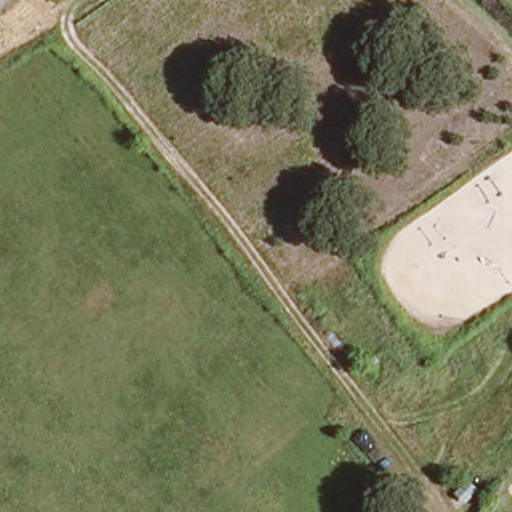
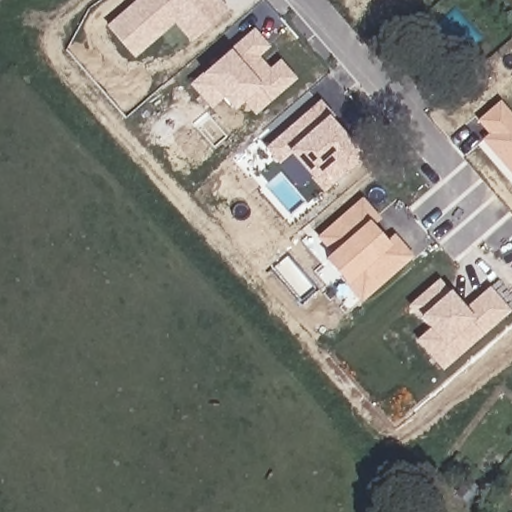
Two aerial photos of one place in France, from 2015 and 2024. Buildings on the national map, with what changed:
new [(219,0),(227,11),(189,44),(172,25),(135,60),(105,26),(135,0),(219,0)]
new [(231,114),(217,98),(207,107),(188,85),(252,30),(270,49),(258,58),(270,71),(281,61),(296,80),(256,115),(245,101),(231,114)]
new [(480,141),(489,134),(476,121),(498,100),(512,115),(512,178),(480,141)]
new [(288,156),(278,165),(265,150),(320,101),(334,116),(330,120),(362,159),(323,193),(288,156)]
new [(329,253),(316,237),(361,198),(380,220),(372,227),(385,242),(394,234),(414,257),(360,304),(322,259),(329,253)]
new [(419,314),(410,303),(438,280),(465,308),(490,288),(511,312),(441,372),(415,342),(426,332),(415,318),(419,314)]

